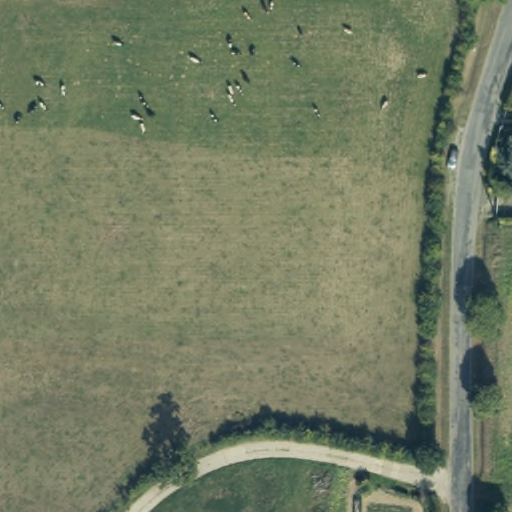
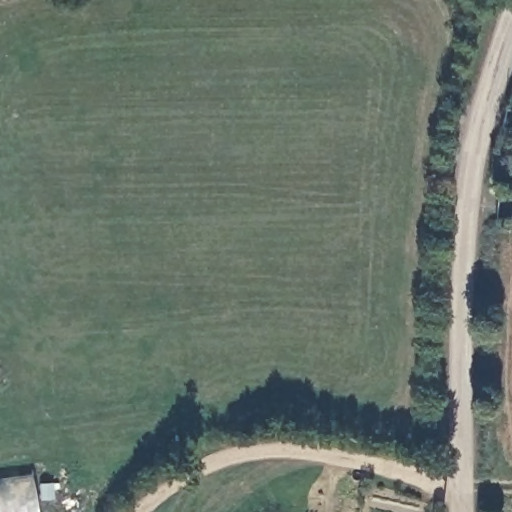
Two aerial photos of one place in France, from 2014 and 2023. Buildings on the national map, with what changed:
new [(36,512),(0,512),(0,478),(30,474),(36,512)]

